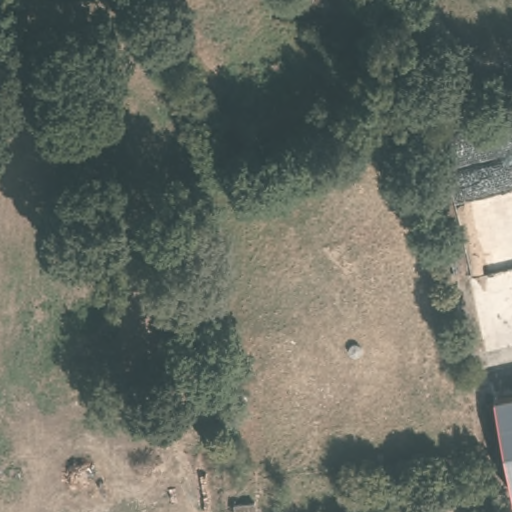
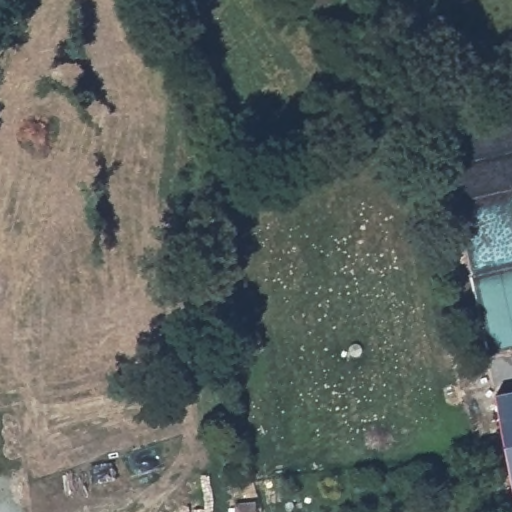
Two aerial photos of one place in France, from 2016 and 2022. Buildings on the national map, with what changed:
unchanged [(495,393),(512,390),(512,496),(495,393)]

